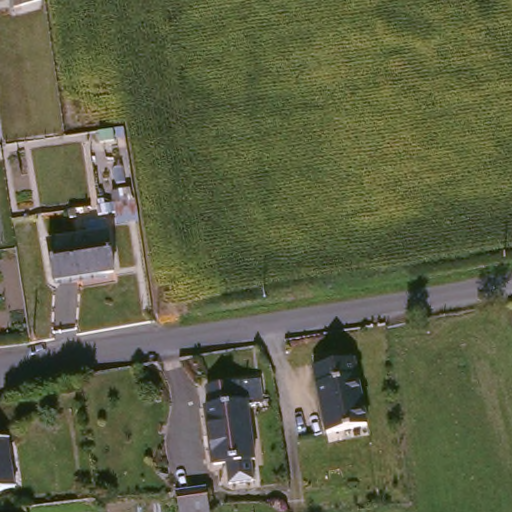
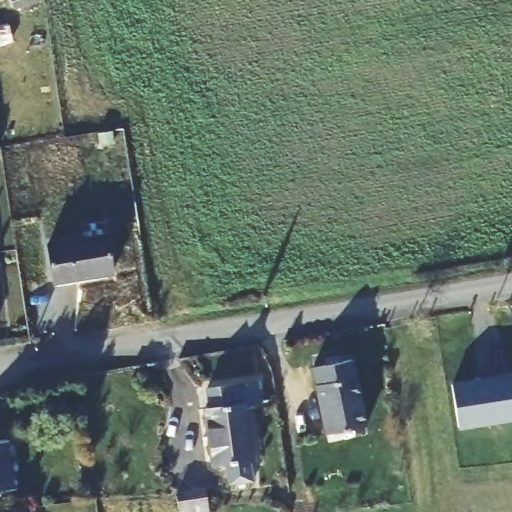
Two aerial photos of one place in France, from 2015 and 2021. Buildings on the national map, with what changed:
unchanged [(11,14),(8,0),(36,0),(38,8),(11,14)]
unchanged [(113,218),(94,220),(93,209),(131,203),(134,221),(114,224),(113,218)]
unchanged [(101,233),(109,270),(54,280),(48,242),(101,233)]
unchanged [(364,420),(323,426),(314,359),(354,353),(364,420)]
new [(512,382),(512,422),(460,430),(453,389),(511,379),(512,382)]
unchanged [(246,461),(243,461),(244,482),(219,484),(218,464),(204,465),(198,407),(205,407),(203,386),(254,381),(256,400),(241,402),(246,461)]
unchanged [(13,483),(0,485),(0,435),(3,435),(13,483)]
unchanged [(206,489),(208,512),(180,512),(178,492),(184,491),(206,489)]

